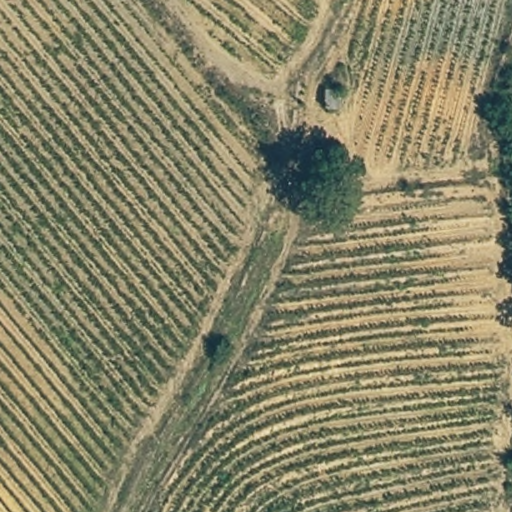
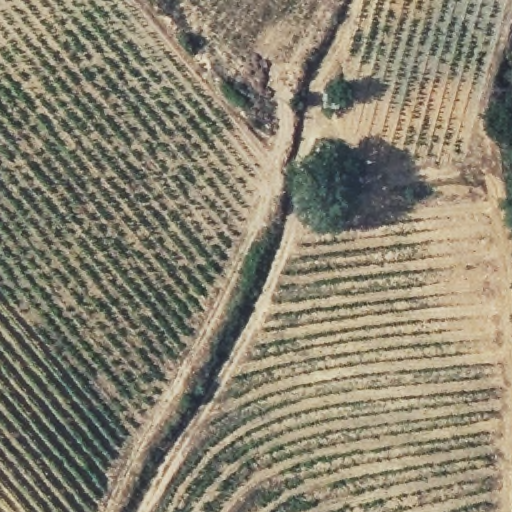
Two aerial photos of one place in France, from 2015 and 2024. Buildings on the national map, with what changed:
unchanged [(322,93),(340,92),(340,111),(321,112),(322,93)]

